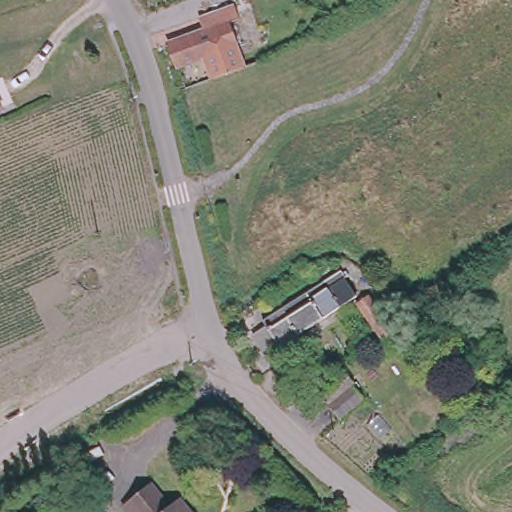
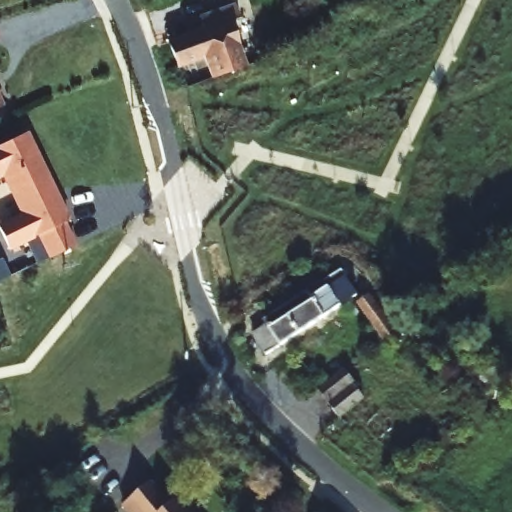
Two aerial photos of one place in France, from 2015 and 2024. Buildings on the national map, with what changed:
unchanged [(214,79),(210,66),(206,58),(182,66),(173,41),(207,29),(203,15),(234,5),(240,4),(245,18),(239,20),(234,22),(245,54),(249,65),(214,79)]
unchanged [(2,109),(0,109),(0,105),(2,109)]
new [(64,223),(76,245),(35,264),(25,243),(10,251),(0,231),(0,223),(19,214),(1,178),(0,178),(0,144),(27,131),(70,219),(64,223)]
unchanged [(266,327),(349,274),(365,299),(358,304),(324,326),(283,353),(266,327)]
unchanged [(380,341),(361,310),(368,305),(388,336),(380,341)]
unchanged [(319,393),(348,374),(357,388),(355,390),(363,404),(338,421),(319,393)]
unchanged [(147,486),(166,510),(178,500),(188,512),(123,512),(121,509),(147,486)]

